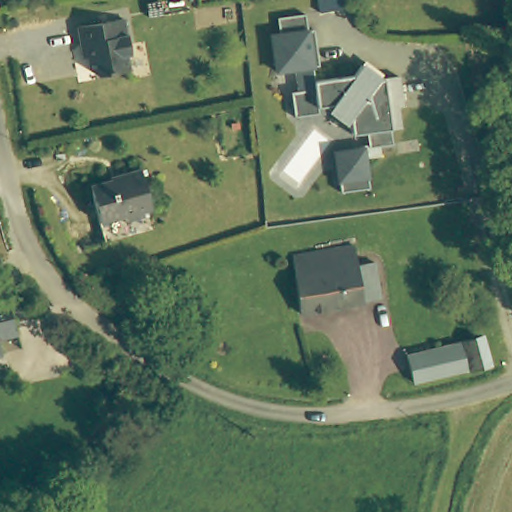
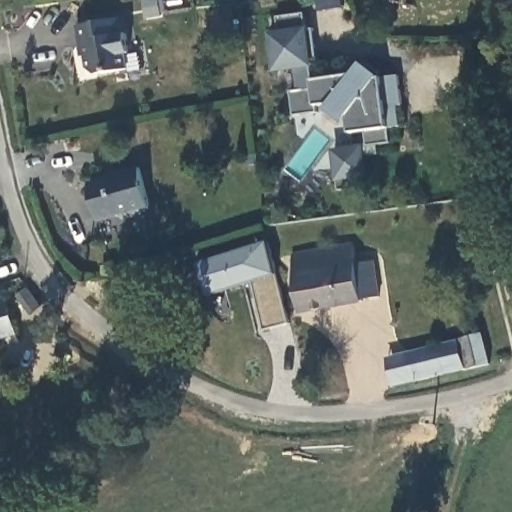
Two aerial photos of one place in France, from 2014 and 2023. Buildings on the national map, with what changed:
unchanged [(348,4),(323,7),(323,0),(348,0),(348,4)]
unchanged [(312,26),(318,25),(323,62),(317,62),(318,77),(358,72),(368,66),(385,83),(403,81),(407,109),(402,109),(405,128),(394,130),(396,143),(372,146),(371,131),(356,133),(354,117),(336,103),(322,104),(323,110),(298,113),(295,89),(302,88),(300,65),(281,68),(276,31),(284,30),(282,13),(310,9),(312,26)]
unchanged [(125,16),(132,52),(128,52),(131,67),(92,75),(91,69),(87,70),(83,42),(80,43),(76,26),(125,16)]
unchanged [(372,187),(344,191),(339,150),(367,147),(372,187)]
unchanged [(123,175),(122,172),(142,169),(151,210),(141,212),(142,217),(122,220),(121,216),(98,221),(91,181),(123,175)]
new [(200,263),(268,243),(277,274),(289,323),(265,330),(251,283),(211,295),(200,263)]
unchanged [(353,243),(356,262),(373,260),(378,296),(360,298),(361,301),(298,309),(295,278),(292,255),(353,243)]
unchanged [(121,295),(121,293),(122,291),(122,290),(123,289),(124,288),(125,287),(126,286),(127,285),(129,284),(132,283),(134,283),(135,283),(136,283),(137,284),(140,284),(141,285),(142,286),(144,286),(145,288),(146,289),(147,291),(147,292),(147,294),(148,296),(148,297),(148,298),(148,299),(147,301),(147,303),(146,304),(146,305),(144,307),(143,308),(142,309),(140,310),(139,310),(137,310),(136,311),(135,311),(133,311),(131,311),(130,310),(129,310),(127,309),(126,308),(125,307),(124,306),(122,305),(122,304),(122,302),(121,300),(121,299),(121,297),(121,295)]
unchanged [(19,332),(0,338),(0,303),(9,300),(19,332)]
unchanged [(491,363),(471,368),(464,340),(485,335),(491,363)]
unchanged [(406,353),(460,340),(467,369),(413,382),(394,386),(387,358),(406,353)]
unchanged [(0,353),(0,350),(1,353),(0,353)]

